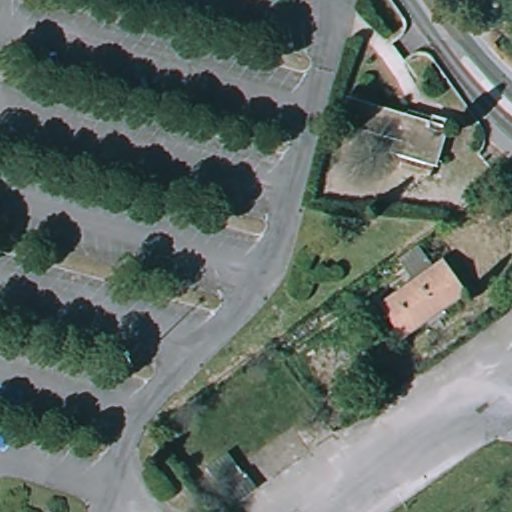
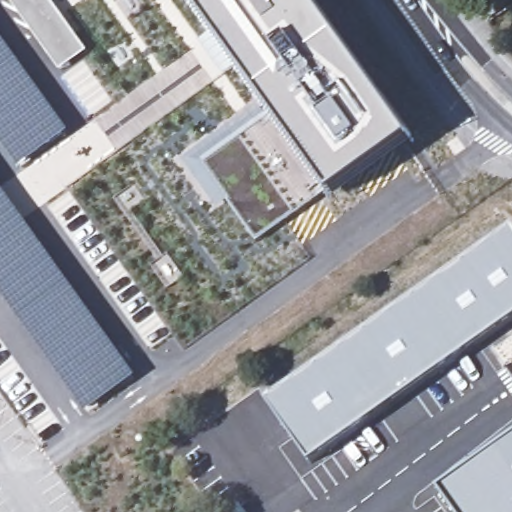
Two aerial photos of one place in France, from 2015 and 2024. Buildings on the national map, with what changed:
new [(61,73),(10,0),(50,0),(88,53),(61,73)]
new [(330,199),(320,184),(257,242),(200,164),(265,105),(190,0),(308,0),(410,143),(330,199)]
demolished [(427,114),(446,119),(432,165),(380,150),(383,143),(337,129),(346,100),(425,123),(427,114)]
new [(512,229),(512,323),(312,466),(267,401),(512,229)]
demolished [(402,338),(380,308),(445,261),(467,292),(402,338)]
new [(512,443),(512,512),(455,512),(442,493),(512,443)]
unchanged [(194,485),(240,452),(259,479),(214,512),(194,485)]

